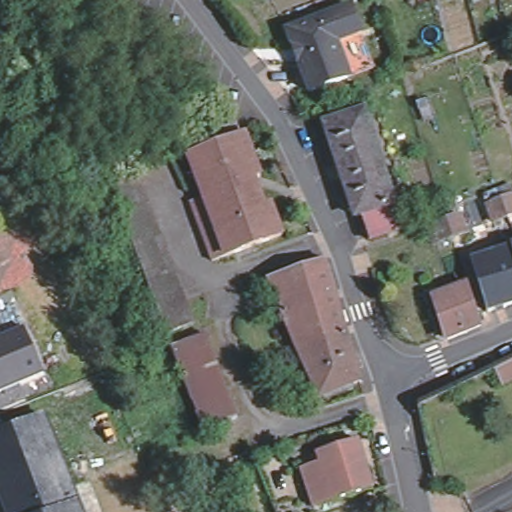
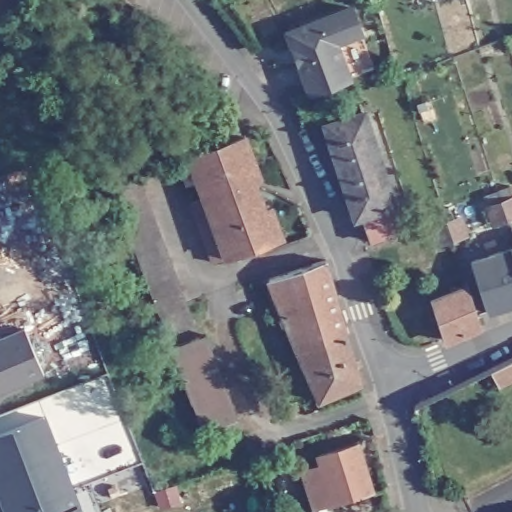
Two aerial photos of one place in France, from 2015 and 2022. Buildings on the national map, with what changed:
unchanged [(296,33),(355,11),(363,35),(340,45),(351,80),(311,94),(293,41),(296,33)]
unchanged [(466,42),(477,38),(484,35),(488,46),(479,49),(470,53),(455,59),(449,61),(404,78),(398,80),(393,58),(442,40),(445,50),(466,42)]
unchanged [(509,39),(512,38),(512,49),(510,42),(509,39)]
unchanged [(354,105),(392,222),(360,232),(352,208),(348,209),(318,117),(354,105)]
unchanged [(204,241),(199,225),(193,210),(214,203),(211,193),(203,196),(192,164),(220,154),(214,139),(228,134),(235,131),(245,145),(263,193),(256,196),(259,203),(266,200),(283,246),(236,263),(215,270),(204,241)]
unchanged [(148,287),(143,273),(138,259),(133,245),(127,231),(122,217),(116,203),(110,187),(139,178),(144,192),(150,207),(156,221),(161,234),(166,248),(171,262),(176,276),(181,291),(194,324),(166,335),(153,301),(148,287)]
unchanged [(504,203),(512,200),(512,219),(510,220),(495,225),(489,209),(504,203)]
unchanged [(462,218),(468,234),(455,239),(441,244),(434,228),(449,222),(462,218)]
unchanged [(512,306),(489,314),(474,265),(512,252),(512,306)]
unchanged [(336,294),(282,311),(270,279),(268,274),(274,272),(276,277),(326,260),(336,294)]
unchanged [(446,333),(442,322),(434,301),(442,299),(471,290),(483,327),(454,339),(449,341),(446,333)]
unchanged [(336,294),(345,328),(319,334),(320,343),(299,351),(291,334),(282,311),(336,294)]
unchanged [(45,373),(0,393),(0,338),(25,327),(45,373)]
unchanged [(320,343),(319,334),(345,328),(360,383),(321,399),(299,351),(320,343)]
unchanged [(203,448),(193,420),(189,410),(166,348),(201,335),(224,397),(206,404),(209,415),(219,443),(203,448)]
unchanged [(491,376),(512,366),(512,388),(500,393),(491,376)]
unchanged [(290,386),(298,410),(305,408),(308,415),(289,422),(279,389),(290,386)]
unchanged [(80,512),(8,512),(0,492),(0,438),(44,420),(80,512)]
unchanged [(318,463),(358,451),(371,499),(335,512),(312,512),(301,480),(321,472),(318,463)]

